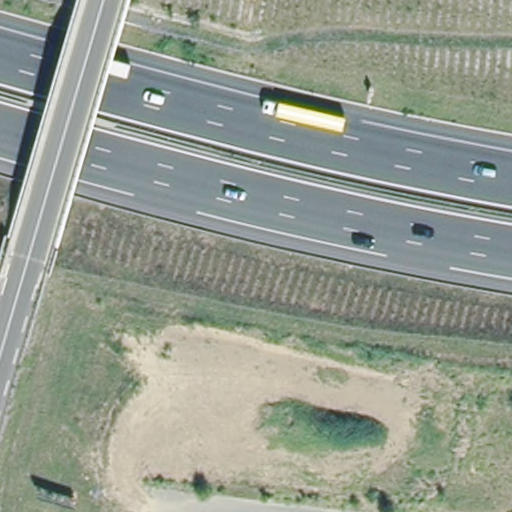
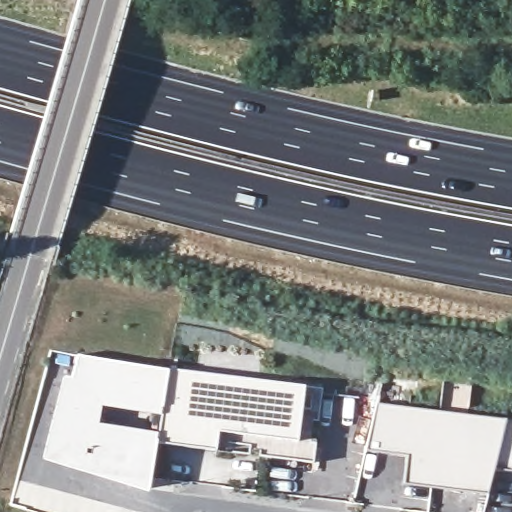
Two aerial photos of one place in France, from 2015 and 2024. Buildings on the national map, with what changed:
new [(259,456),(260,448),(250,447),(253,435),(219,431),(217,448),(155,441),(147,493),(40,459),(61,377),(71,379),(76,355),(168,369),(304,385),(321,387),(318,420),(311,419),(309,440),(315,441),(312,461),(259,456)]
new [(405,483),(410,456),(365,450),(377,404),(506,419),(493,468),(484,496),(405,483)]
new [(506,419),(512,420),(512,470),(493,468),(506,419)]

